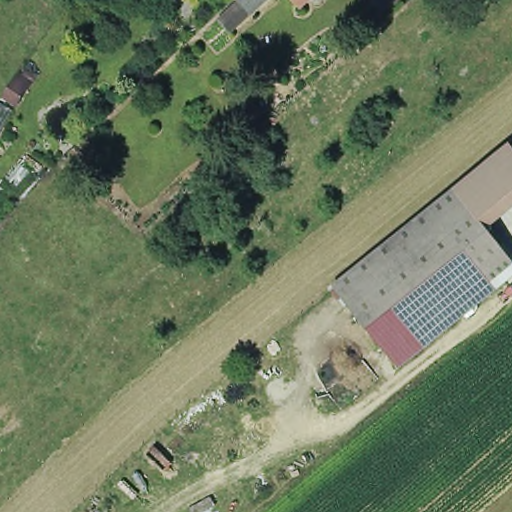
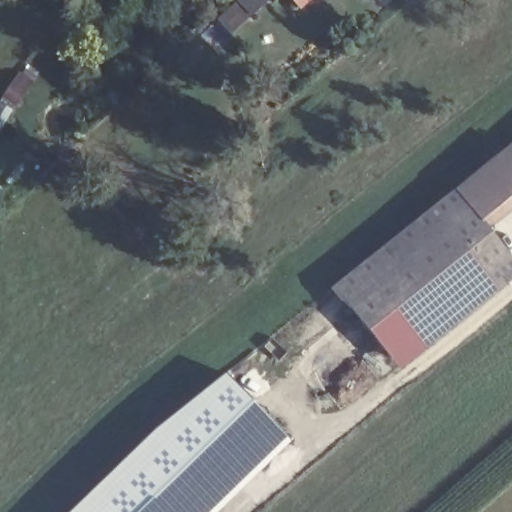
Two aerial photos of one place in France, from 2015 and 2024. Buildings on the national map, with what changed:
unchanged [(295,0),(315,0),(304,10),(295,0)]
unchanged [(494,230),(512,256),(512,258),(391,361),(335,292),(512,148),(512,216),(494,230)]
new [(274,443),(201,512),(84,512),(218,386),(274,443)]

